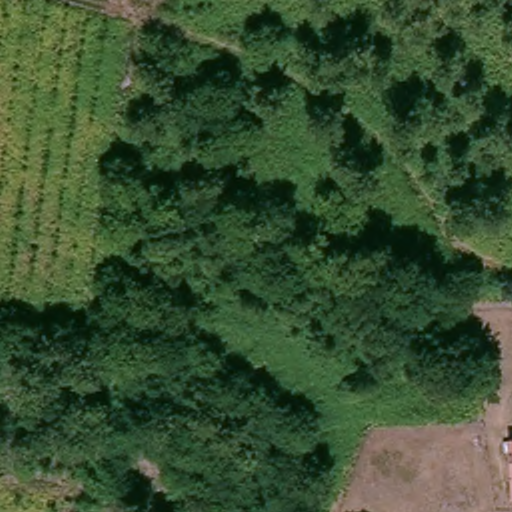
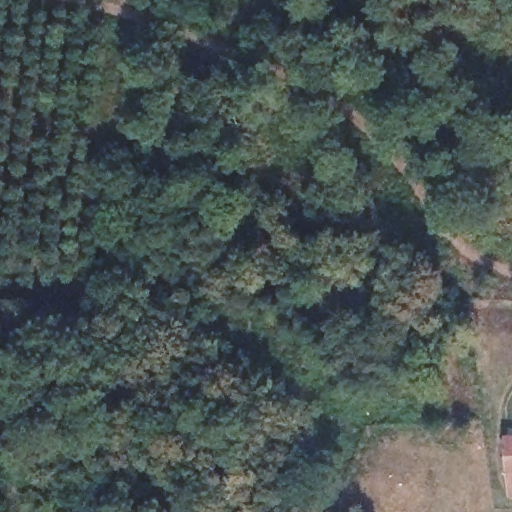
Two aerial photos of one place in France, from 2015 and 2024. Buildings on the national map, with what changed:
unchanged [(509,472),(506,437),(512,437),(512,471),(509,472)]
unchanged [(512,471),(512,492),(511,493),(509,472),(512,471)]

